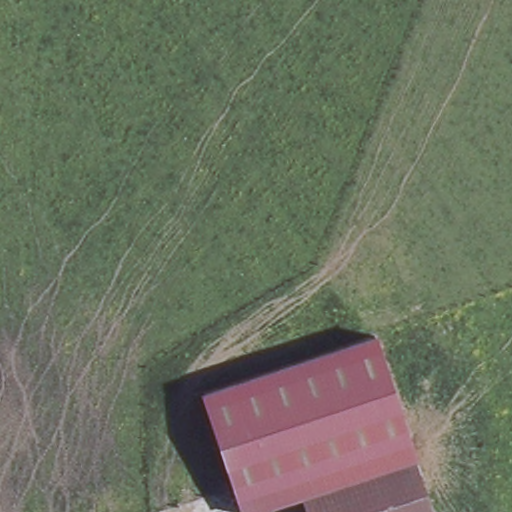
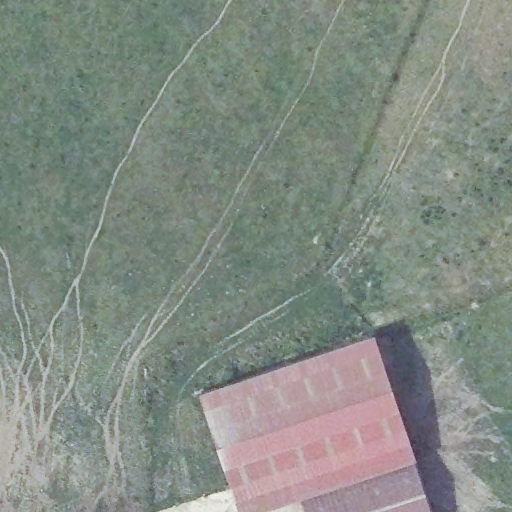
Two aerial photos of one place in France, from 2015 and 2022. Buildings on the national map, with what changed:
unchanged [(372,333),(407,438),(236,496),(199,392),(372,333)]
unchanged [(415,457),(433,512),(305,512),(300,495),(415,457)]

